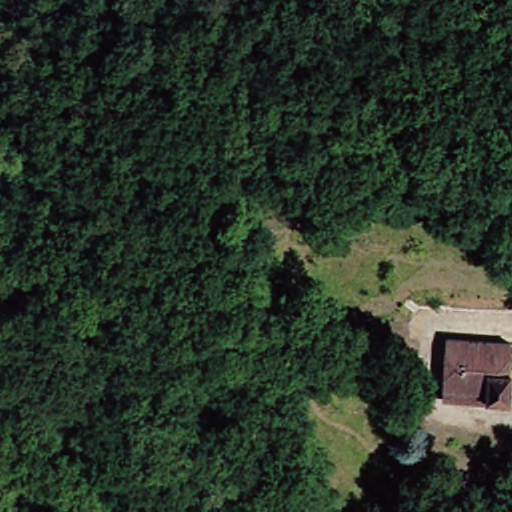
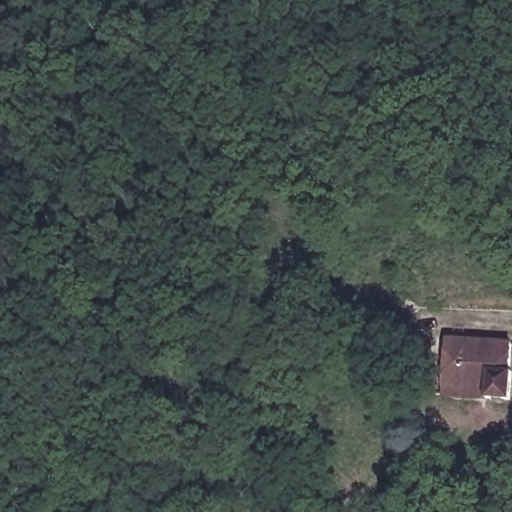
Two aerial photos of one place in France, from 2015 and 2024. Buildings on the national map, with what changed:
unchanged [(502,374),(508,374),(505,406),(477,404),(478,393),(439,390),(442,339),(504,343),(502,374)]

